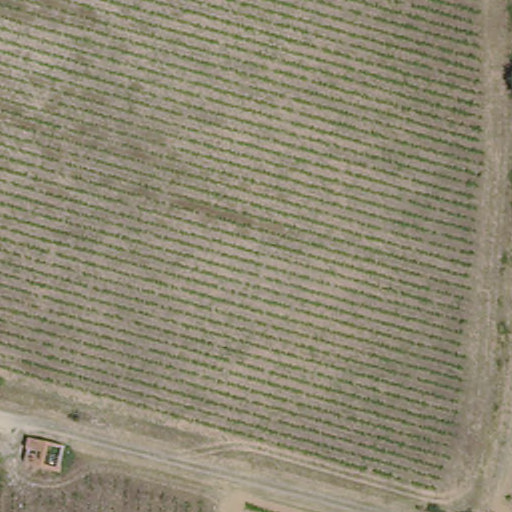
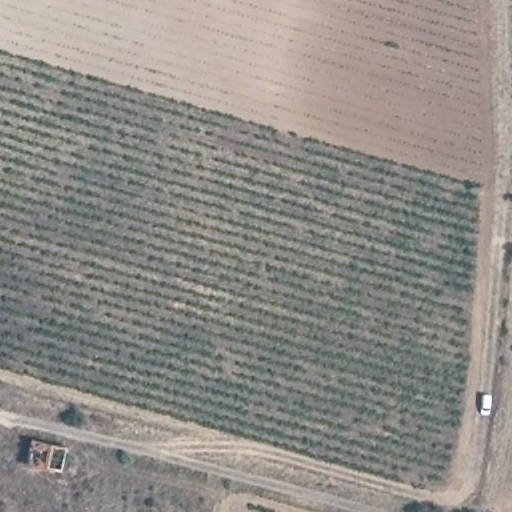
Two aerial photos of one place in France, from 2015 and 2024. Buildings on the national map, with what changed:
unchanged [(61,468),(29,461),(34,437),(66,444),(61,468)]

